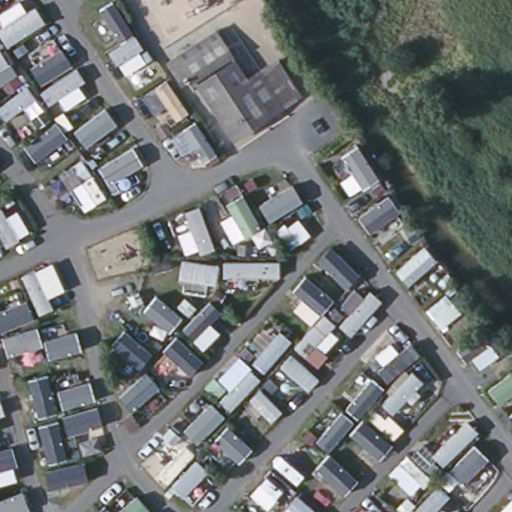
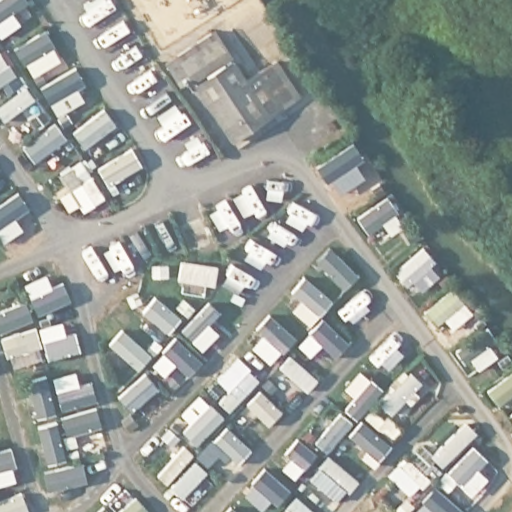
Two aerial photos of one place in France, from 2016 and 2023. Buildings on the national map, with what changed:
unchanged [(216,36),(226,52),(190,73),(180,57),(216,36)]
unchanged [(230,59),(241,77),(275,60),(297,100),(228,139),(195,80),(230,59)]
unchanged [(352,164),(361,177),(351,184),(342,171),(352,164)]

